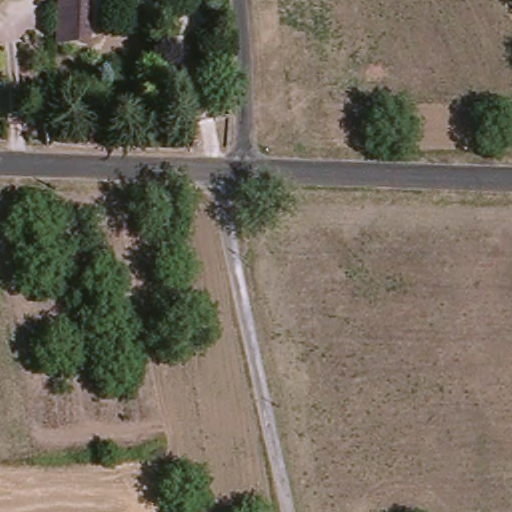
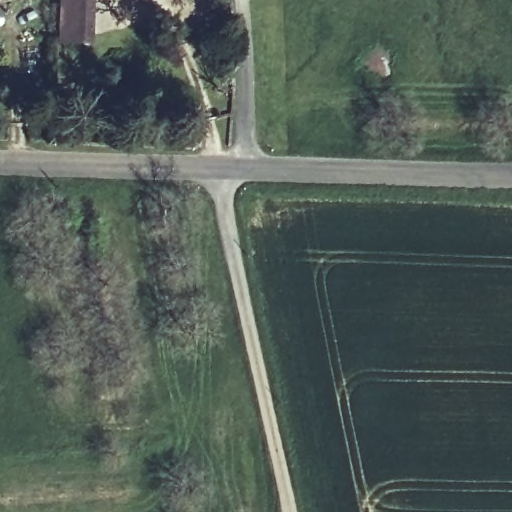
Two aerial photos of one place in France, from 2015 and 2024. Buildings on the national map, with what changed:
unchanged [(51,0),(84,0),(88,41),(55,49),(51,0)]

